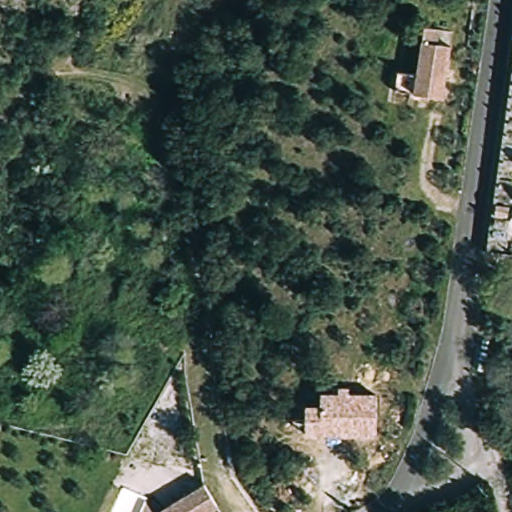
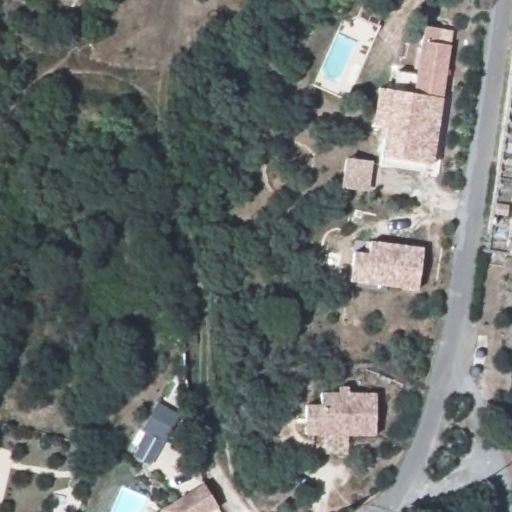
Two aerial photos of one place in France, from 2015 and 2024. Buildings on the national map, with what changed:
unchanged [(399,68),(419,70),(425,23),(439,25),(437,39),(450,41),(443,93),(397,87),(399,68)]
new [(396,91),(397,87),(415,90),(443,93),(432,163),(380,159),(385,126),(372,124),(377,88),(396,91)]
new [(373,162),(368,193),(341,190),(345,159),(373,162)]
new [(369,254),(370,241),(425,249),(418,292),(350,283),(354,252),(369,254)]
unchanged [(307,436),(307,406),(320,405),(320,392),(338,392),(338,387),(348,388),(348,394),(371,394),(371,435),(322,435),(307,436)]
new [(157,402),(180,415),(151,467),(133,457),(157,402)]
unchanged [(175,500),(198,487),(206,482),(219,505),(210,510),(206,512),(165,512),(162,507),(175,500)]

